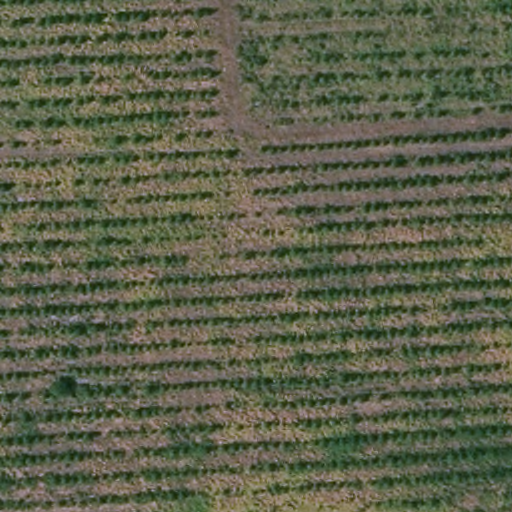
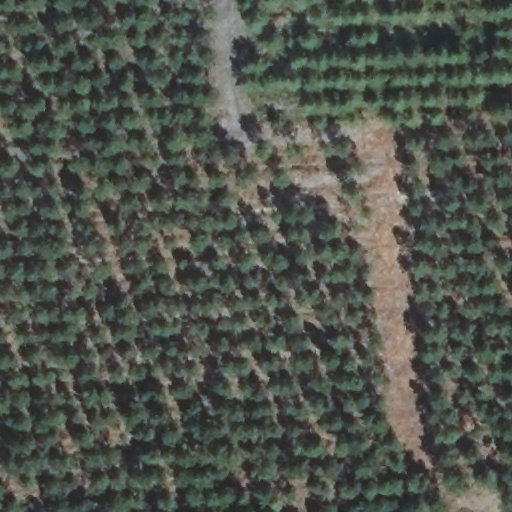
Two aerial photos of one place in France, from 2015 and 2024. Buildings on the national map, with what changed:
[]

